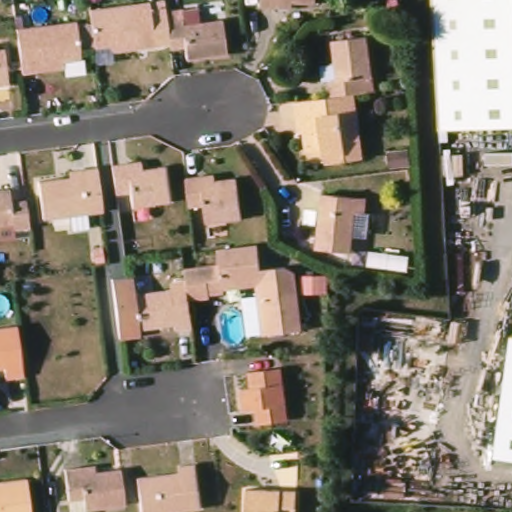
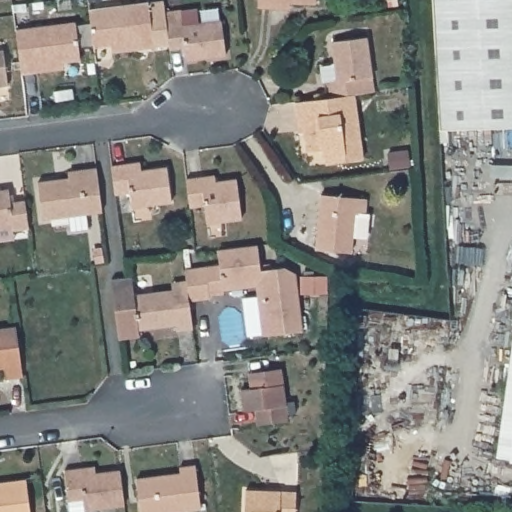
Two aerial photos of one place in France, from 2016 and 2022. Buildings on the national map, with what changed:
unchanged [(281,8),(263,7),(263,0),(321,0),(321,4),(294,2),(294,7),(281,7),(281,8)]
unchanged [(444,125),(437,0),(512,0),(512,121),(444,125)]
unchanged [(117,45),(99,47),(94,11),(154,3),(159,47),(143,49),(143,47),(117,51),(117,45)]
unchanged [(186,11),(202,10),(204,23),(227,21),(231,55),(191,60),(190,47),(174,49),(170,12),(186,10),(186,11)]
unchanged [(42,71),(42,72),(27,74),(21,30),(81,22),(85,60),(67,62),(68,67),(42,71)]
unchanged [(336,80),(328,81),(326,66),(335,65),(340,62),(337,42),(372,37),(380,92),(360,94),(338,97),(336,80)]
unchanged [(13,85),(0,87),(0,44),(8,42),(13,85)]
unchanged [(328,157),(327,149),(311,151),(307,119),(302,119),(300,102),(338,97),(360,94),(368,159),(350,161),(331,164),(330,157),(328,157)]
unchanged [(388,152),(408,150),(410,165),(390,167),(388,152)]
unchanged [(144,163),(145,171),(172,167),(177,202),(137,207),(135,192),(120,194),(116,166),(132,164),(144,163)]
unchanged [(107,211),(91,212),(93,227),(75,230),(74,215),(47,218),(43,181),(86,176),(86,170),(102,167),(107,211)]
unchanged [(207,177),(219,176),(220,182),(241,179),(246,219),(212,223),(210,205),(195,207),(191,179),(207,177)]
unchanged [(15,202),(30,200),(34,227),(19,230),(18,224),(0,226),(0,191),(14,189),(15,202)]
unchanged [(321,249),(326,195),(372,199),(370,215),(373,215),(372,232),(357,232),(355,252),(321,249)]
unchanged [(222,250),(230,249),(262,245),(266,270),(289,267),(300,273),(307,331),(273,335),(272,333),(252,336),(248,298),(263,296),(262,285),(228,289),(229,293),(214,295),(214,297),(194,301),(190,270),(224,265),(222,250)]
unchanged [(102,260),(94,261),(93,249),(101,248),(102,260)]
unchanged [(328,276),(329,292),(306,292),(306,277),(328,276)]
unchanged [(116,279),(131,277),(137,277),(139,295),(178,290),(179,302),(194,301),(198,328),(182,331),(181,325),(144,330),(144,336),(124,339),(116,279)]
unchanged [(10,378),(9,367),(0,368),(0,329),(21,327),(28,376),(10,378)]
unchanged [(496,455),(512,342),(512,457),(496,455)]
unchanged [(249,411),(246,390),(256,388),(254,372),(286,368),(288,385),(293,421),(263,425),(261,409),(249,411)]
unchanged [(141,478),(185,473),(184,467),(200,465),(206,508),(178,512),(146,512),(141,478)]
unchanged [(80,469),(93,467),(94,473),(120,470),(125,505),(86,510),(85,499),(69,501),(65,471),(80,468),(80,469)]
unchanged [(0,487),(4,487),(3,482),(31,479),(36,512),(0,512),(0,487)]
unchanged [(301,492),(300,512),(250,512),(251,490),(301,492)]

